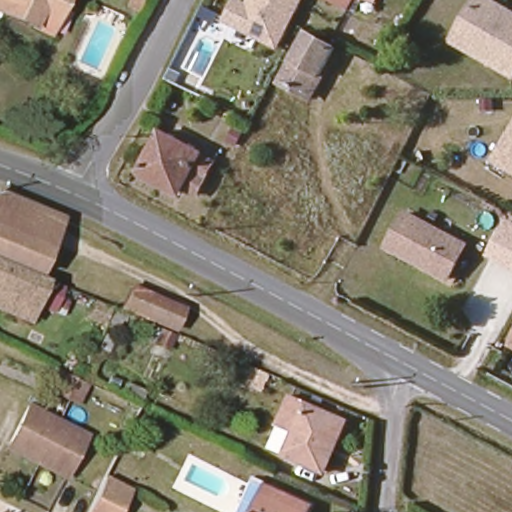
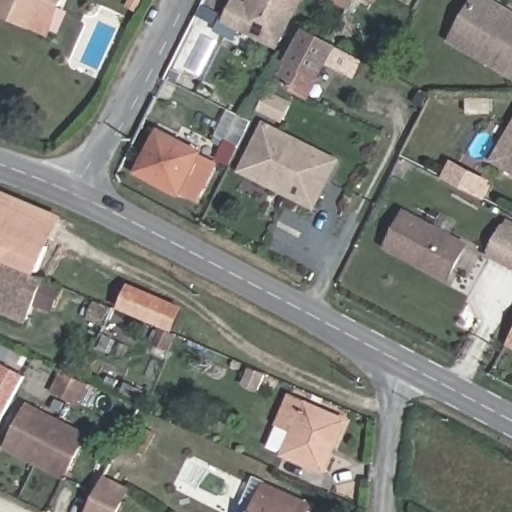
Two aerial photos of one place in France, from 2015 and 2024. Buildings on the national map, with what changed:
unchanged [(10,12),(15,0),(65,0),(59,14),(49,37),(7,20),(10,12)]
unchanged [(221,19),(232,0),(245,0),(246,1),(246,0),(296,0),(276,48),(221,19)]
unchanged [(326,0),(348,0),(342,9),(326,0)]
unchanged [(472,0),(497,0),(512,9),(512,78),(449,41),(472,0)]
unchanged [(336,45),(320,76),(325,79),(312,105),(275,87),(306,31),(336,45)]
unchanged [(512,119),(512,173),(489,159),(512,119)]
new [(312,205),(276,187),(275,190),(238,171),(261,126),(333,162),(312,205)]
unchanged [(205,159),(202,165),(214,170),(206,187),(195,182),(185,200),(141,177),(162,136),(205,159)]
unchanged [(60,222),(48,248),(0,226),(0,197),(60,222)]
unchanged [(400,211),(460,243),(443,277),(382,246),(400,211)]
new [(503,228),(505,228),(507,223),(512,225),(512,265),(490,254),(503,228)]
unchanged [(48,248),(36,273),(0,258),(0,226),(48,248)]
unchanged [(39,282),(28,305),(0,292),(0,265),(39,282)]
unchanged [(122,313),(133,290),(181,310),(172,333),(122,313)]
unchanged [(0,311),(0,292),(28,305),(20,321),(0,311)]
unchanged [(512,338),(512,343),(510,342),(512,338)]
new [(0,424),(0,365),(23,376),(0,424)]
unchanged [(57,392),(64,378),(85,388),(77,403),(57,392)]
unchanged [(276,456),(294,403),(331,415),(337,417),(325,454),(320,469),(276,456)]
unchanged [(55,473),(22,456),(10,451),(14,443),(30,410),(89,439),(72,473),(69,479),(55,473)]
unchanged [(127,489),(117,512),(92,512),(107,481),(127,489)]
unchanged [(263,491),(303,508),(302,512),(254,512),(263,491)]

